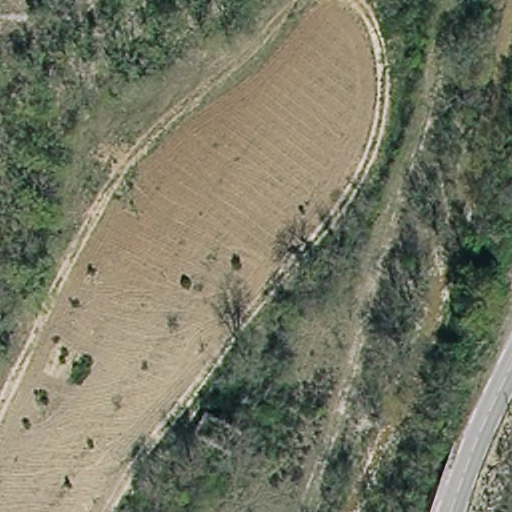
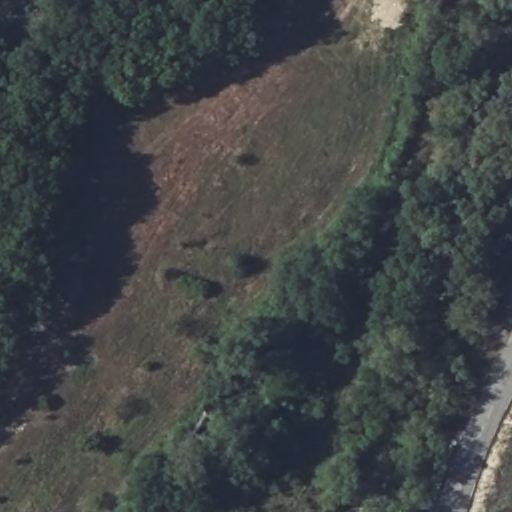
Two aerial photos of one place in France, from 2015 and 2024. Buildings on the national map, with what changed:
[]

